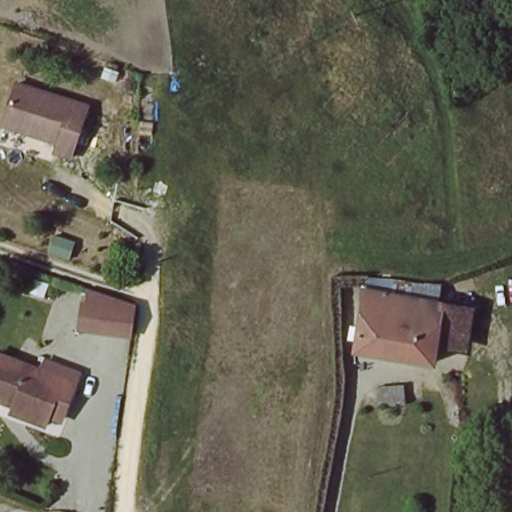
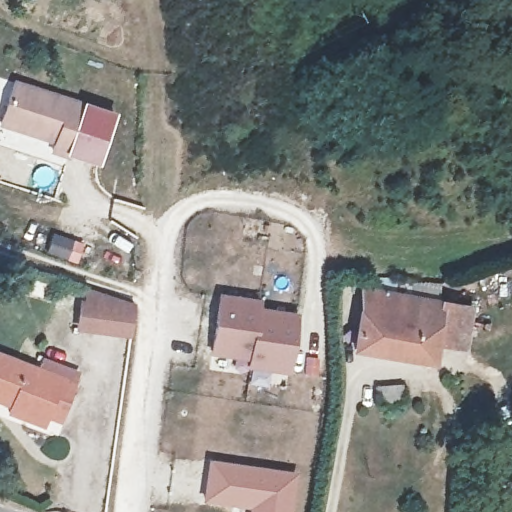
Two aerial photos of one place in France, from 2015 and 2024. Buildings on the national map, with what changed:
unchanged [(84,102),(69,150),(50,145),(54,135),(2,120),(13,80),(84,102)]
unchanged [(431,361),(356,351),(365,290),(441,298),(434,340),(431,361)]
new [(265,303),(263,315),(298,318),(292,375),(249,370),(250,359),(212,353),(220,296),(265,303)]
unchanged [(474,301),(468,345),(434,340),(441,298),(474,301)]
unchanged [(121,323),(120,330),(85,326),(89,301),(124,306),(121,323)]
unchanged [(51,416),(47,429),(10,417),(14,406),(15,404),(0,399),(0,356),(40,369),(43,360),(76,371),(66,401),(60,418),(51,416)]
unchanged [(420,388),(421,409),(389,410),(388,390),(420,388)]
new [(209,458),(299,472),(292,512),(247,512),(248,510),(203,503),(209,458)]

